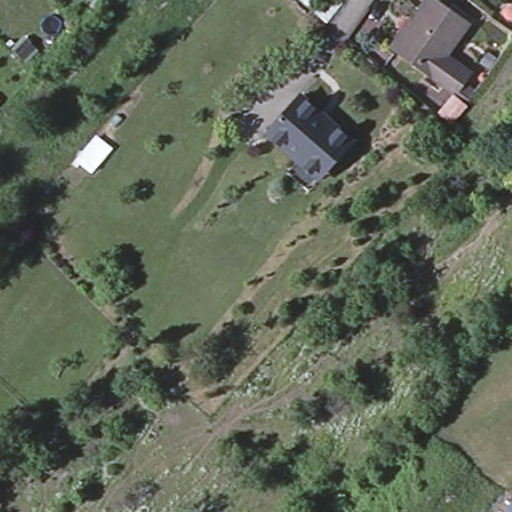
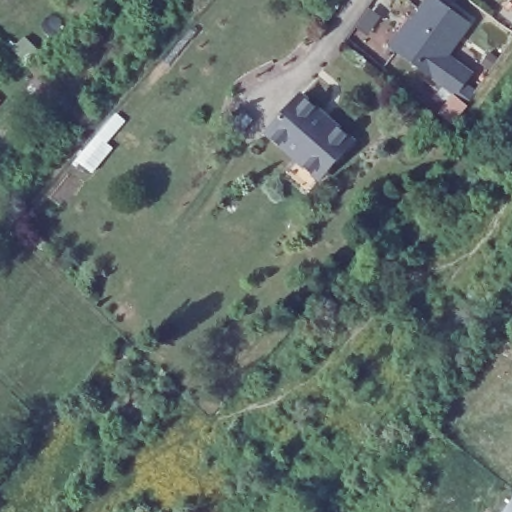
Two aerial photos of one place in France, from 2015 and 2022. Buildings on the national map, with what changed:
unchanged [(428,80),(414,70),(390,55),(407,28),(406,26),(423,0),(426,0),(452,17),(463,24),(441,59),(465,75),(452,96),(428,80)]
unchanged [(298,159),(287,149),(267,131),(300,94),(319,111),(353,140),(325,171),(320,178),(298,159)]
unchanged [(512,501),(512,512),(504,512),(512,501)]

